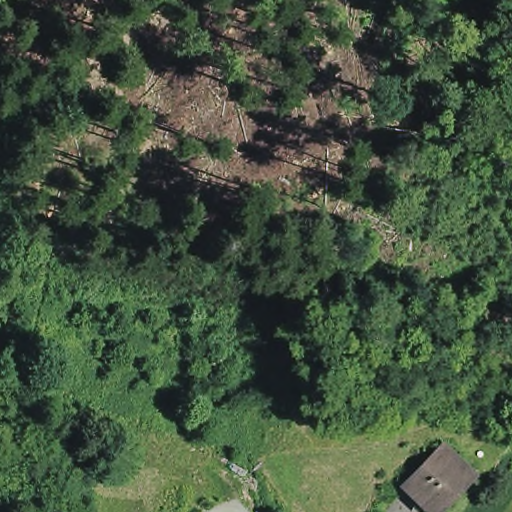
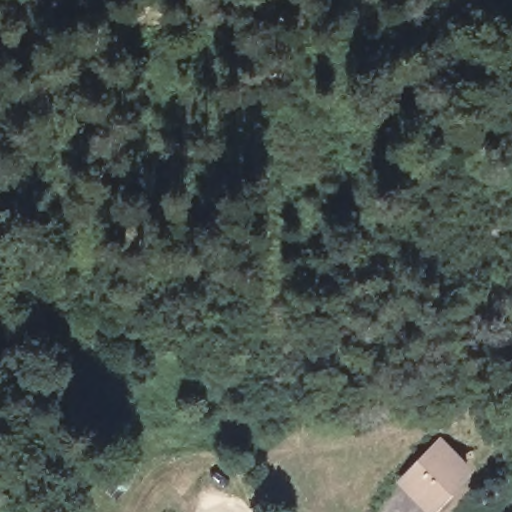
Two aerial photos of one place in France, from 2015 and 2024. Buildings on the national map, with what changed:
unchanged [(418,480),(451,444),(477,468),(444,503),(418,480)]

